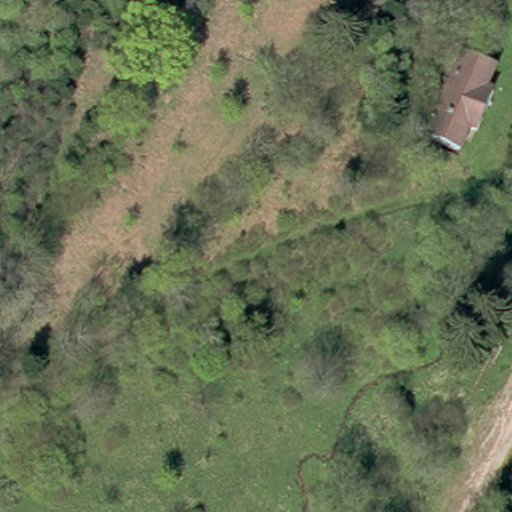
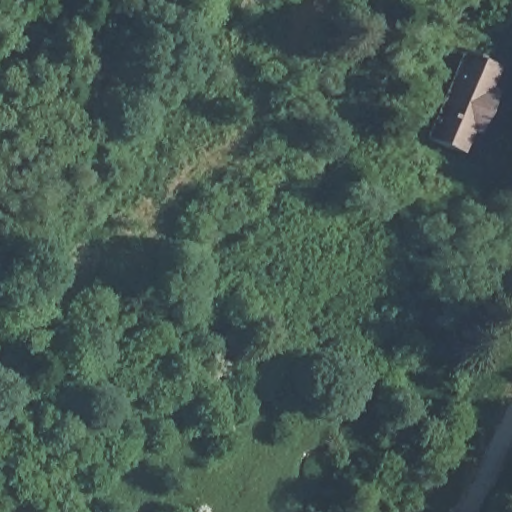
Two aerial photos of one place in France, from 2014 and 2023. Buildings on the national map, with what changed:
unchanged [(487,67),(478,91),(486,94),(472,134),(461,130),(454,151),(421,139),(456,55),(487,67)]

